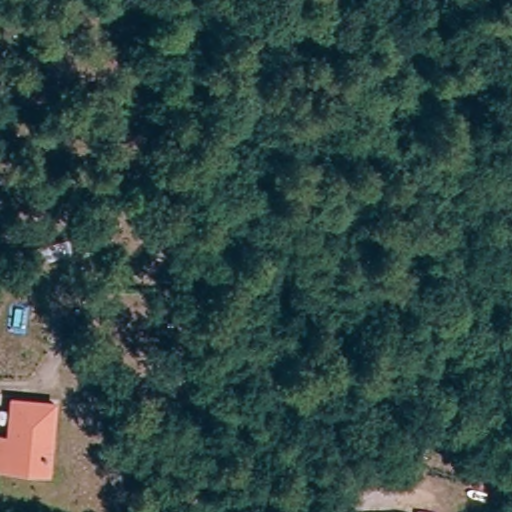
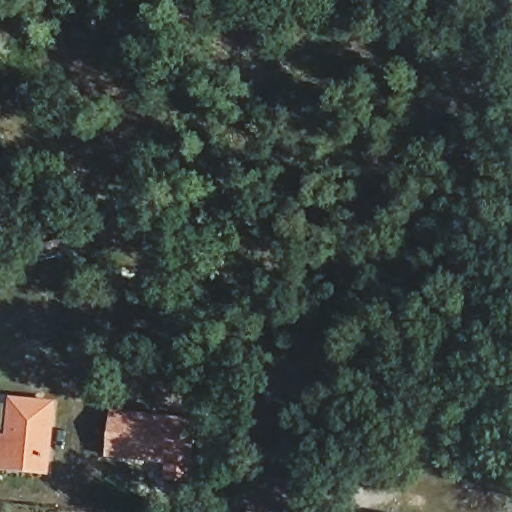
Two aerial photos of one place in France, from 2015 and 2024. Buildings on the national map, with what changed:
new [(111,409),(207,422),(203,449),(187,448),(183,466),(166,467),(166,475),(142,467),(104,460),(111,409)]
unchanged [(0,475),(5,442),(20,443),(24,411),(64,415),(60,444),(53,448),(50,474),(25,472),(24,478),(0,475)]

